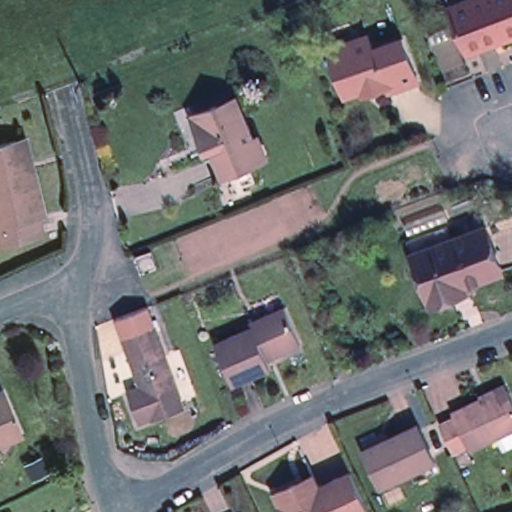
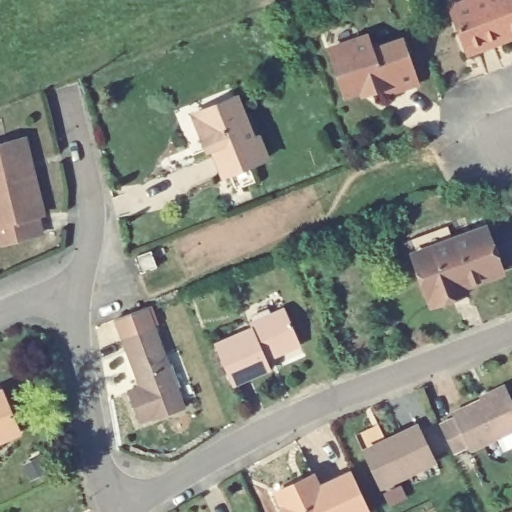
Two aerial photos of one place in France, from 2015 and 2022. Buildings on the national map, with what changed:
unchanged [(452,7),(449,0),(512,0),(512,37),(467,52),(452,7)]
unchanged [(357,84),(340,91),(333,69),(326,45),(334,43),(364,33),(369,48),(399,38),(415,80),(384,91),(381,83),(372,86),(360,91),(357,84)]
unchanged [(187,108),(220,96),(238,89),(243,103),(247,114),(195,133),(187,108)]
unchanged [(237,190),(230,174),(224,176),(212,146),(204,148),(201,139),(199,140),(195,133),(247,114),(255,136),(260,134),(270,159),(252,166),(257,182),(237,190)]
unchanged [(30,214),(35,232),(0,245),(0,146),(8,143),(19,171),(34,213),(30,214)]
unchanged [(455,303),(434,311),(412,254),(405,240),(444,226),(450,239),(483,227),(502,276),(466,290),(470,298),(455,303)]
unchanged [(149,250),(153,261),(138,267),(134,256),(149,250)]
unchanged [(215,343),(251,327),(249,322),(282,306),(300,345),(267,360),(270,367),(233,384),(215,343)]
unchanged [(189,407),(142,424),(129,389),(144,384),(125,336),(155,324),(189,407)]
unchanged [(493,436),(465,449),(462,443),(450,448),(437,419),(449,413),(448,411),(477,398),(475,396),(505,384),(512,400),(512,444),(499,450),(493,436)]
unchanged [(16,430),(0,438),(0,397),(16,430)]
unchanged [(435,461),(380,486),(364,450),(417,424),(435,461)]
unchanged [(44,472),(29,482),(22,469),(37,460),(44,472)]
unchanged [(370,510),(366,512),(287,512),(277,491),(314,473),(318,484),(352,469),(370,510)]

